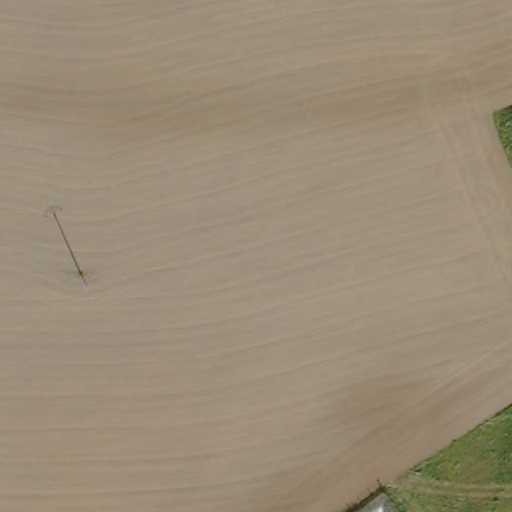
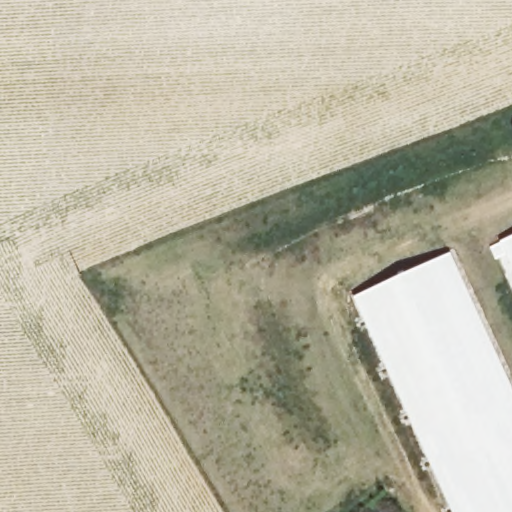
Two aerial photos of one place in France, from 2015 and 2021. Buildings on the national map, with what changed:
new [(502,243),(512,238),(512,265),(502,243)]
new [(452,255),(512,383),(512,512),(454,512),(355,297),(452,255)]

